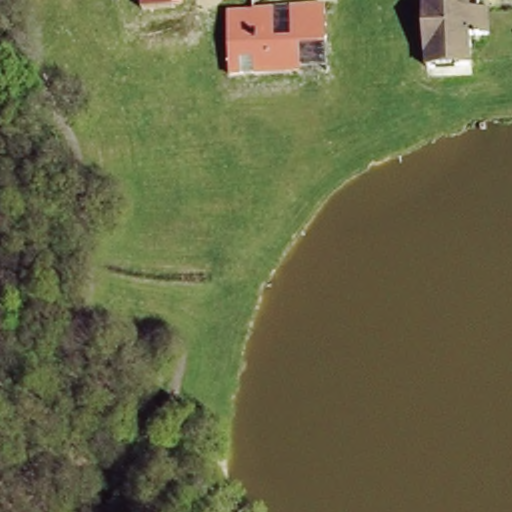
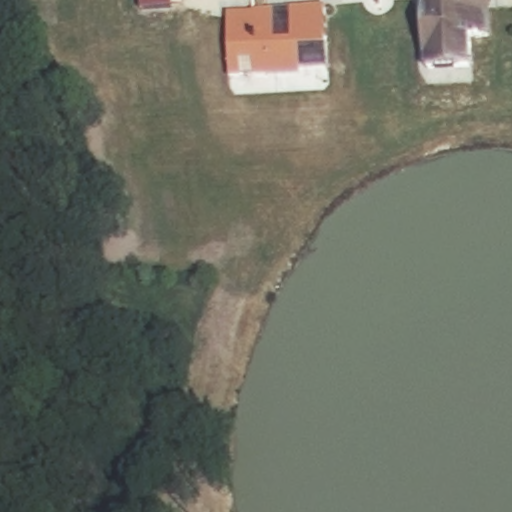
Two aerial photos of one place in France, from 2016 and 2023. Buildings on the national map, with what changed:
unchanged [(142,9),(142,0),(183,0),(183,6),(142,9)]
unchanged [(470,1),(471,8),(490,9),(491,33),(471,35),(472,67),(425,70),(421,4),(470,1)]
unchanged [(325,8),(326,66),(298,69),(298,76),(227,78),(225,13),(325,8)]

